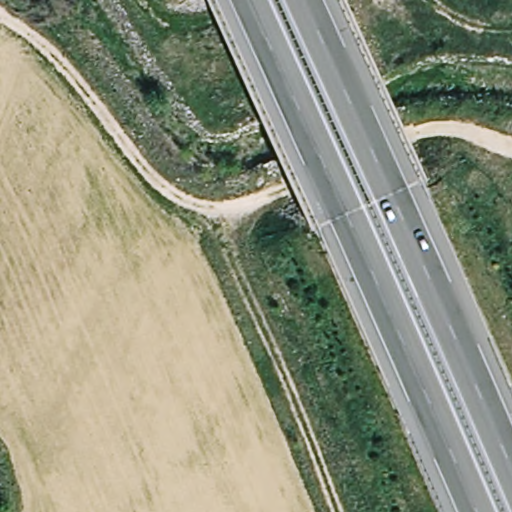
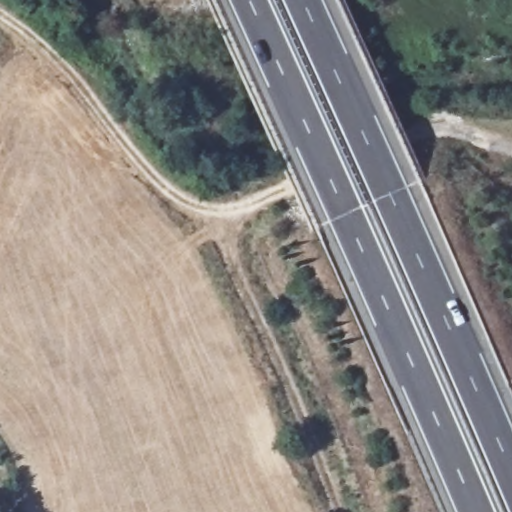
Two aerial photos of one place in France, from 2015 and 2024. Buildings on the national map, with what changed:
[]

